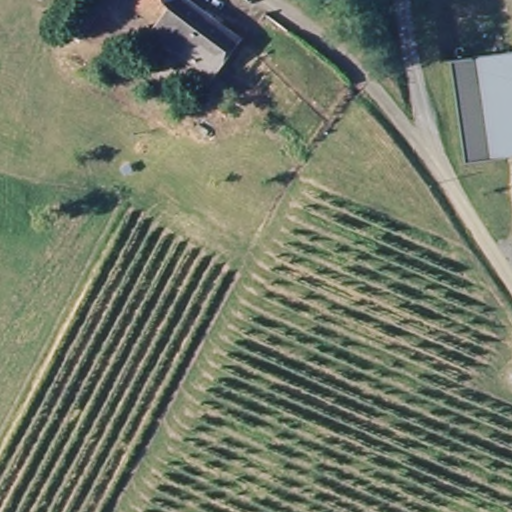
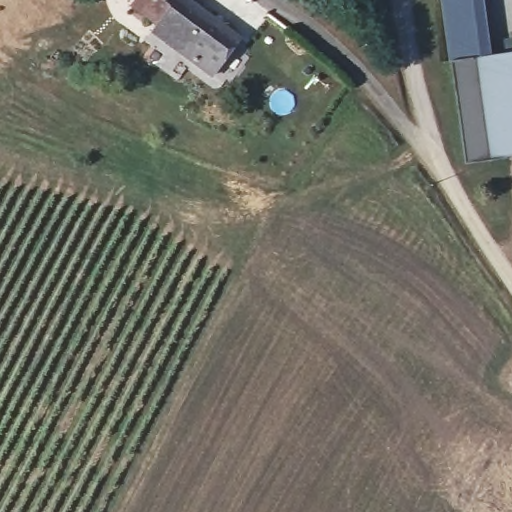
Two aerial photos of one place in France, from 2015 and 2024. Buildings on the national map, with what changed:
unchanged [(189,0),(242,39),(215,73),(136,12),(144,0),(189,0)]
new [(461,60),(447,62),(441,0),(486,0),(493,57),(461,60)]
unchanged [(512,98),(493,57),(512,56),(512,98)]
unchanged [(461,60),(493,57),(512,98),(512,157),(470,160),(461,60)]

